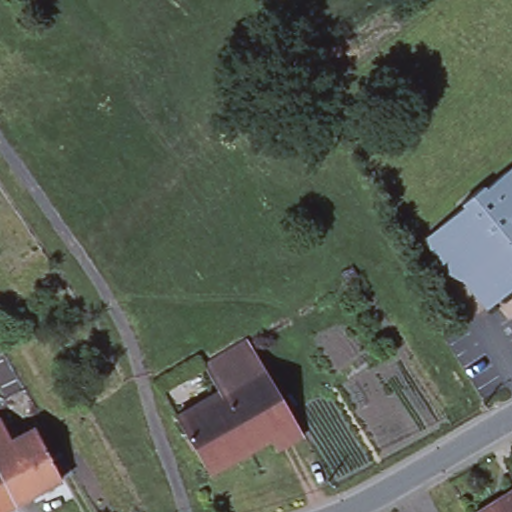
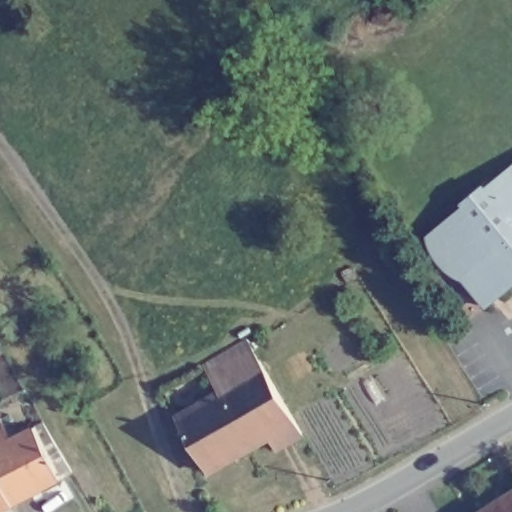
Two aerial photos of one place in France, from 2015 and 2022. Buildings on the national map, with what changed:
unchanged [(461,268),(450,271),(427,238),(512,167),(512,282),(485,302),(461,268)]
unchanged [(266,364),(221,390),(207,365),(251,339),(266,364)]
unchanged [(306,433),(279,448),(272,436),(234,457),(201,402),(221,390),(266,364),(306,433)]
unchanged [(234,457),(212,470),(179,414),(201,402),(234,457)]
unchanged [(33,429),(58,481),(12,506),(1,512),(0,512),(0,426),(8,442),(33,429)]
unchanged [(502,494),(512,488),(512,512),(476,512),(476,511),(502,494)]

